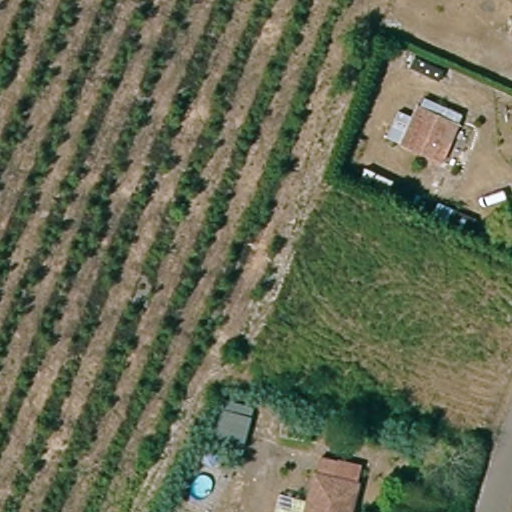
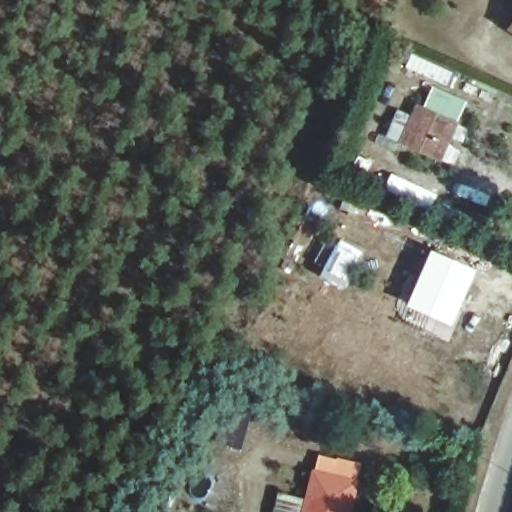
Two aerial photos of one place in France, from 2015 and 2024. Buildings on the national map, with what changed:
unchanged [(509,26),(512,20),(512,28),(509,26)]
unchanged [(403,144),(388,138),(400,111),(414,117),(418,107),(422,109),(426,97),(464,114),(460,125),(444,162),(403,144)]
unchanged [(476,215),(471,226),(436,210),(441,199),(476,215)]
new [(408,307),(432,252),(477,272),(452,327),(408,307)]
unchanged [(243,443),(215,437),(225,397),(253,404),(243,443)]
unchanged [(312,474),(317,456),(334,460),(334,458),(359,465),(354,484),(347,512),(303,512),(312,474)]

